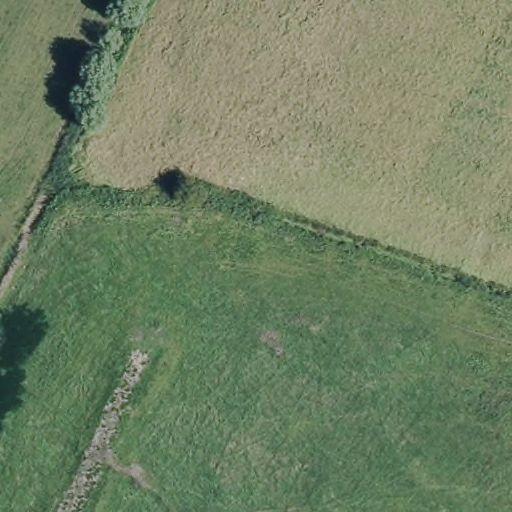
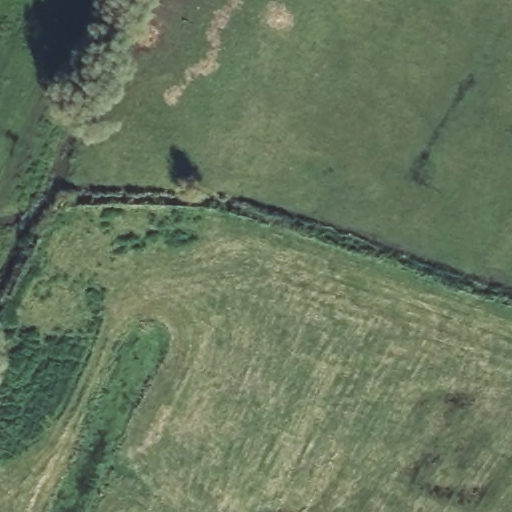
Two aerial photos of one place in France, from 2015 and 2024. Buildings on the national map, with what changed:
[]

